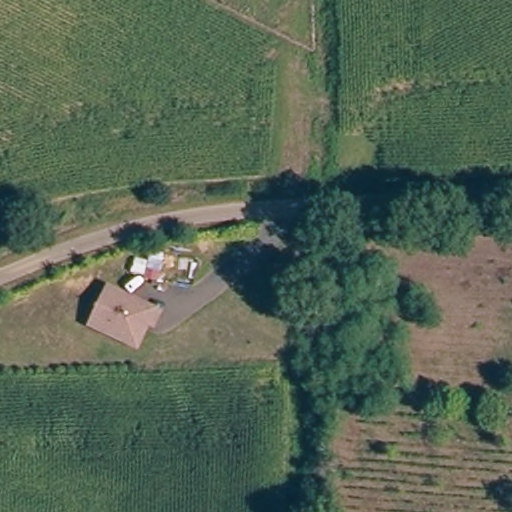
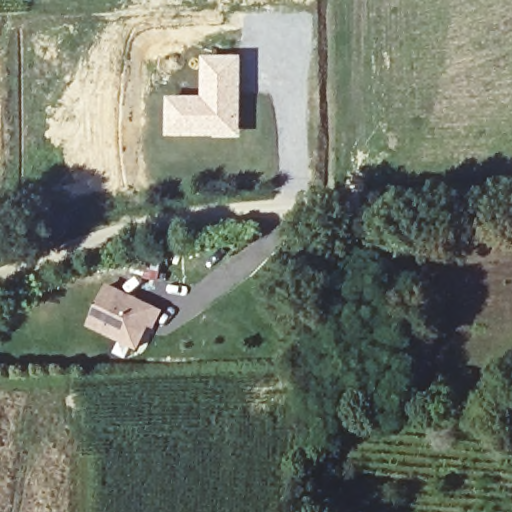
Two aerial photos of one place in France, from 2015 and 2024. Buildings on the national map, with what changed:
new [(202,94),(202,55),(243,54),(243,138),(166,138),(165,95),(202,94)]
unchanged [(154,326),(150,324),(137,348),(90,323),(111,284),(161,311),(154,326)]

